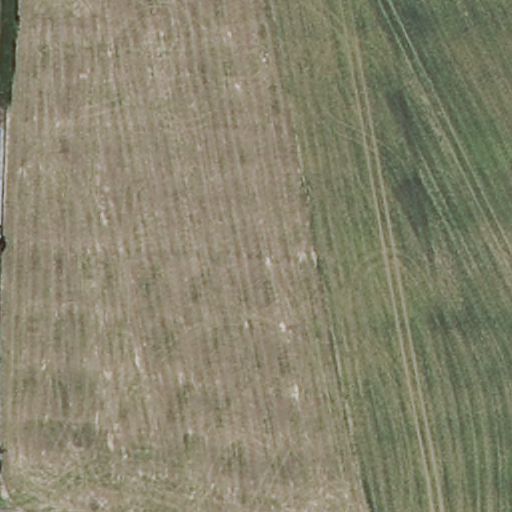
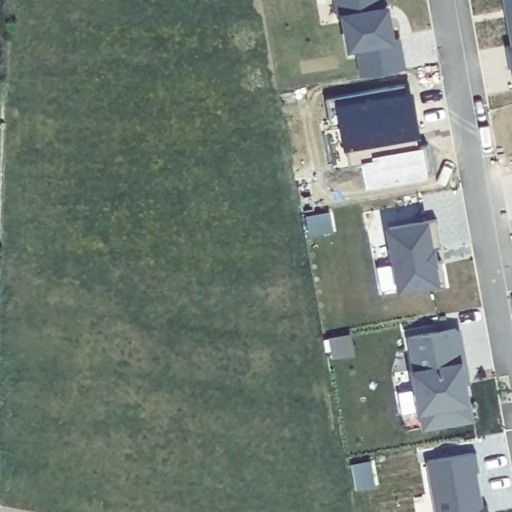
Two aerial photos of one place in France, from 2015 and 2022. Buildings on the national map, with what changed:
new [(390,9),(394,41),(399,41),(403,70),(360,77),(356,55),(348,56),(340,17),(337,17),(334,0),(384,0),(385,9),(390,9)]
new [(506,48),(510,48),(502,0),(512,0),(512,76),(506,48)]
new [(413,98),(420,141),(345,154),(337,108),(413,98)]
new [(427,180),(365,190),(362,165),(372,164),(372,159),(423,152),(427,180)]
new [(330,214),(332,233),(310,237),(305,218),(330,214)]
new [(428,223),(441,289),(397,297),(383,230),(428,223)]
new [(460,329),(475,425),(422,433),(405,337),(460,329)]
new [(350,337),(355,358),(332,361),(329,340),(350,337)]
new [(475,455),(484,512),(435,512),(426,462),(475,455)]
new [(372,465),(375,490),(355,493),(352,467),(372,465)]

